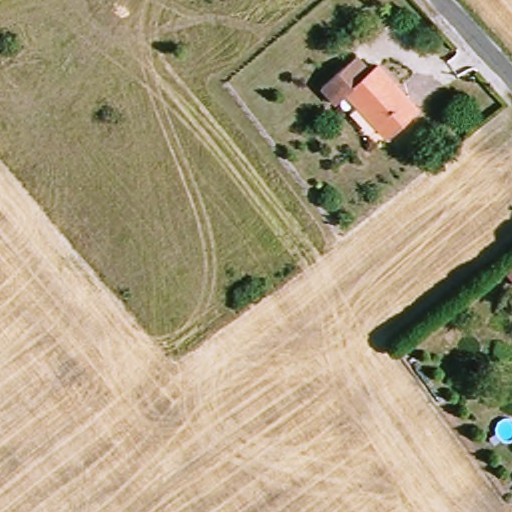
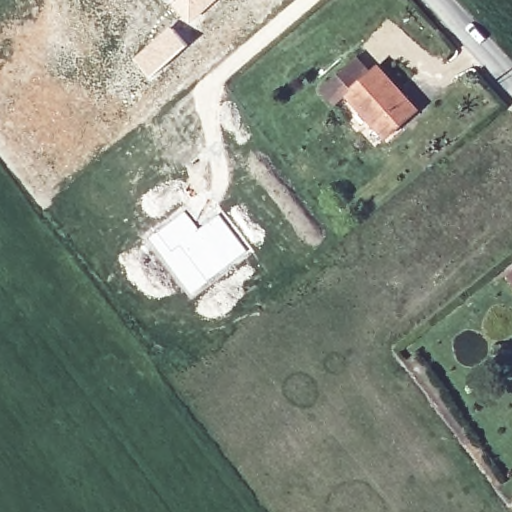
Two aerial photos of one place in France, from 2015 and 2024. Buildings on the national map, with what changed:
new [(200,15),(187,0),(216,0),(200,15)]
unchanged [(405,146),(369,105),(357,115),(344,100),(379,70),(392,85),(400,78),(436,120),(405,146)]
new [(184,210),(198,229),(207,222),(229,252),(225,256),(227,258),(239,247),(224,224),(221,215),(249,250),(190,297),(147,238),(184,210)]

